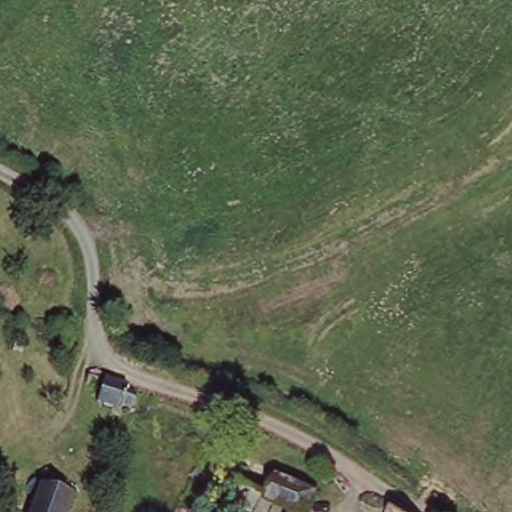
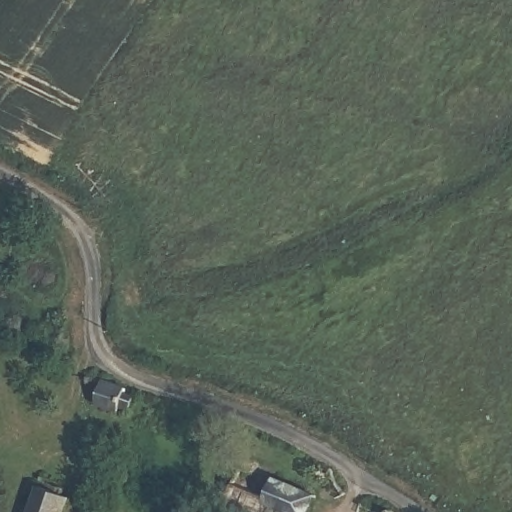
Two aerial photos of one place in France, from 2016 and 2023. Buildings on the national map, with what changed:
unchanged [(140,385),(139,401),(121,398),(119,401),(100,397),(103,376),(140,385)]
unchanged [(227,492),(234,470),(274,484),(265,508),(227,492)]
unchanged [(274,484),(275,478),(312,492),(305,512),(278,512),(265,508),(274,484)]
unchanged [(68,496),(62,512),(30,512),(39,484),(68,496)]

